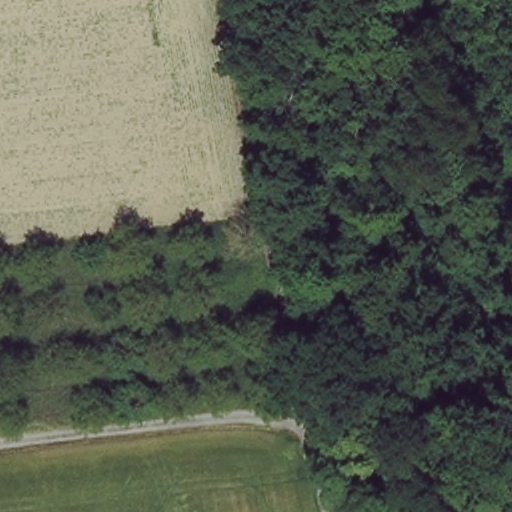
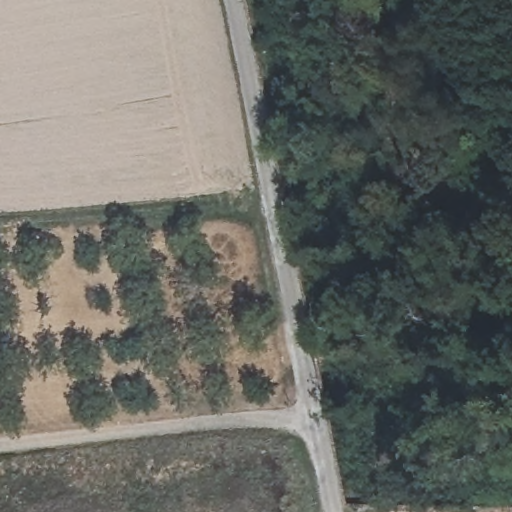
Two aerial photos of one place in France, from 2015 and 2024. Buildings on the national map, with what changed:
[]

